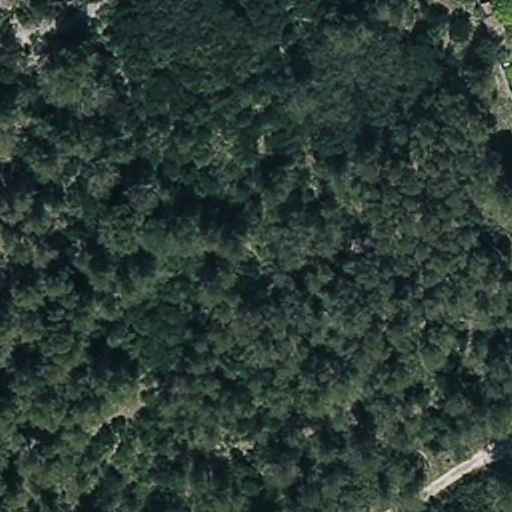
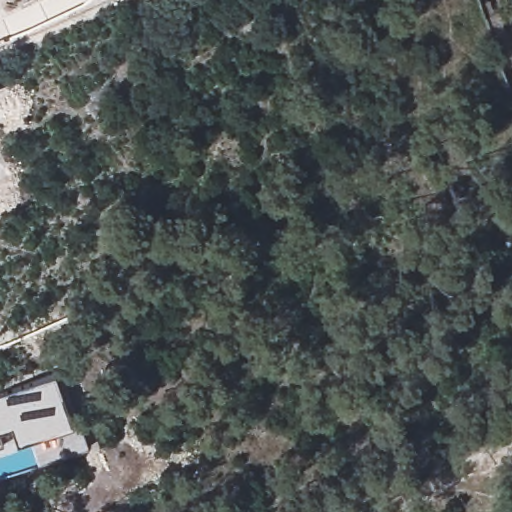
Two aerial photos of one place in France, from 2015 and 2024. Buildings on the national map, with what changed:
new [(54,373),(72,425),(17,444),(10,427),(0,431),(0,392),(54,373)]
new [(2,443),(0,444),(0,437),(2,443)]

